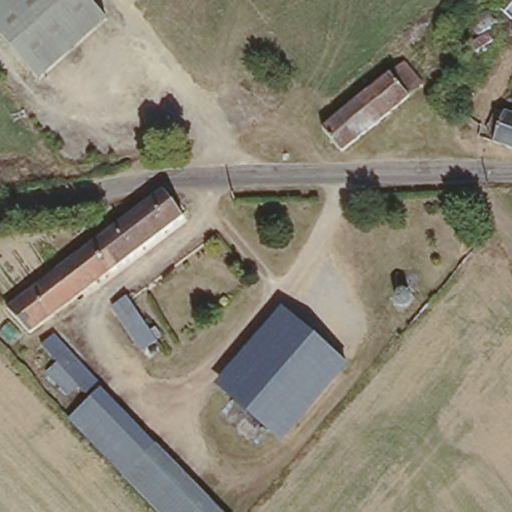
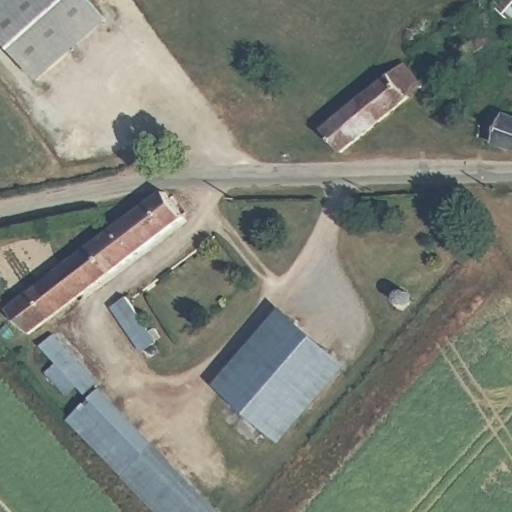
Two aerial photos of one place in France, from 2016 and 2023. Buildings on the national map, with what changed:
unchanged [(36,86),(15,62),(0,45),(0,6),(7,0),(97,0),(114,19),(36,86)]
unchanged [(352,150),(333,125),(350,110),(415,61),(433,84),(352,150)]
unchanged [(507,116),(512,118),(512,148),(497,144),(507,116)]
unchanged [(185,220),(30,337),(6,308),(155,198),(162,191),(185,220)]
unchanged [(125,295),(147,329),(152,325),(157,333),(154,335),(156,338),(141,348),(111,305),(125,295)]
unchanged [(217,385),(287,311),(352,368),(280,445),(217,385)]
unchanged [(60,336),(105,387),(90,398),(45,349),(60,336)]
unchanged [(125,480),(71,423),(107,393),(160,448),(125,480)]
unchanged [(220,512),(156,512),(125,480),(160,448),(220,512)]

